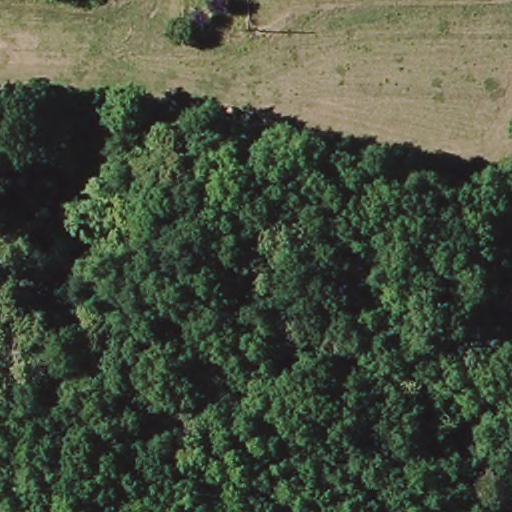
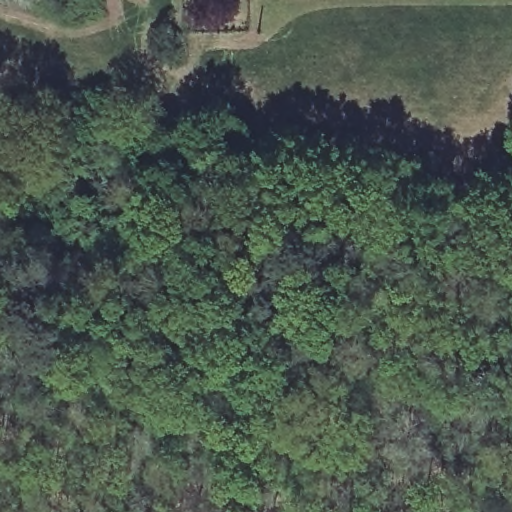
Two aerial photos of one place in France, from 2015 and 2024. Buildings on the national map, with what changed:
unchanged [(104,116),(156,115),(155,149),(117,146),(116,182),(91,182),(94,145),(103,146),(104,116)]

